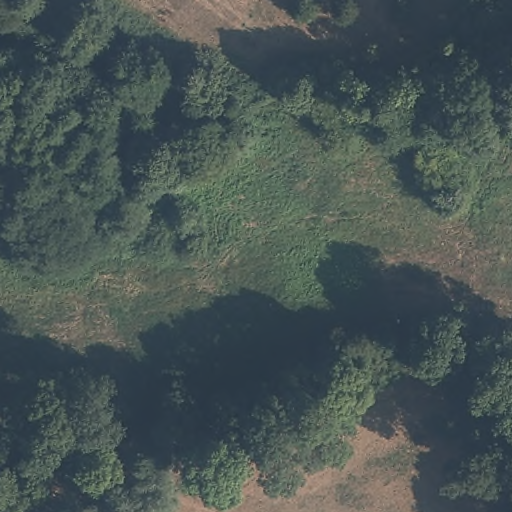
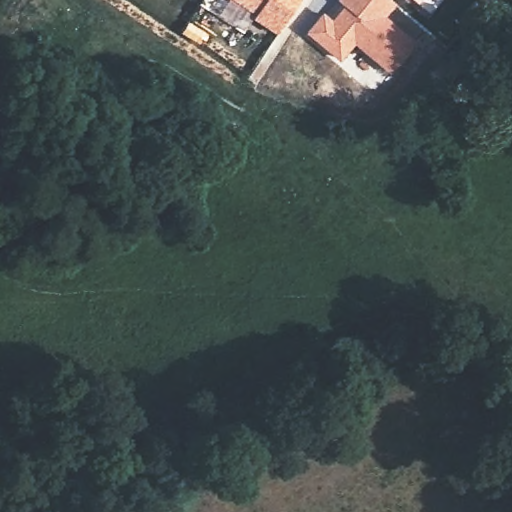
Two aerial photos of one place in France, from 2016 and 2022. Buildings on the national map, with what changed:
unchanged [(230,0),(265,0),(255,16),(230,0)]
new [(345,9),(338,3),(340,0),(388,0),(393,4),(382,18),(414,44),(390,73),(353,43),(340,60),(308,34),(322,17),(332,24),(345,9)]
new [(412,0),(421,0),(417,4),(412,0)]

